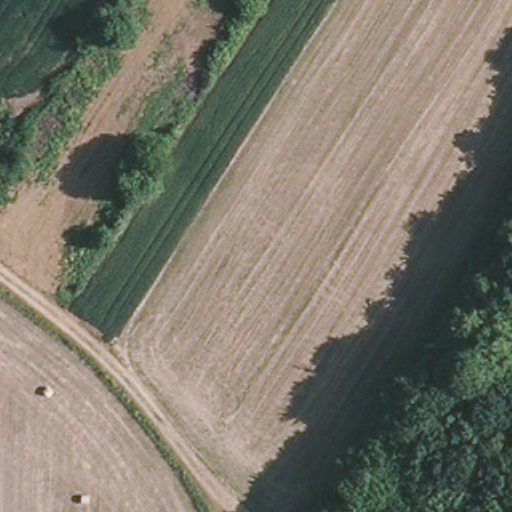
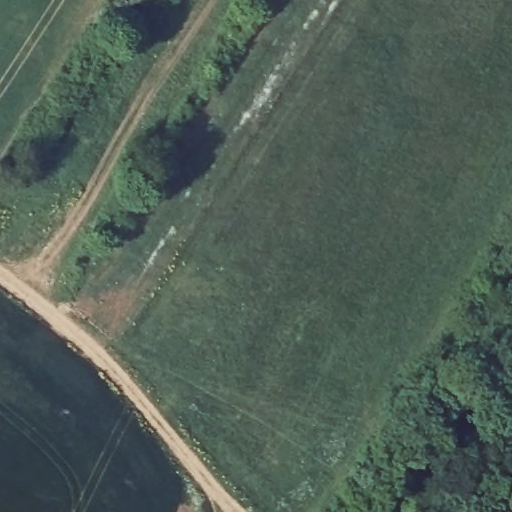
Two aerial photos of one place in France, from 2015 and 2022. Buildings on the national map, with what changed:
[]

